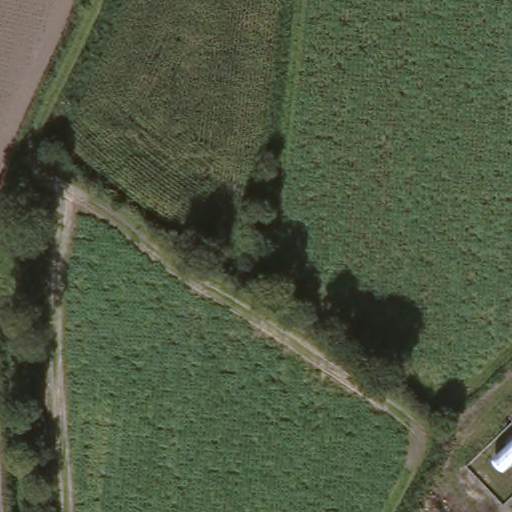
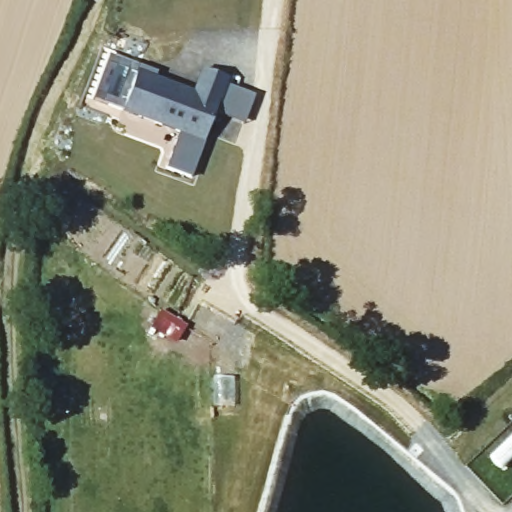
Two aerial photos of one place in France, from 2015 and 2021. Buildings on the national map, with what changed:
new [(178,132),(122,112),(137,73),(140,67),(157,74),(156,78),(192,92),(201,69),(228,80),(219,107),(205,142),(191,178),(165,168),(178,132)]

